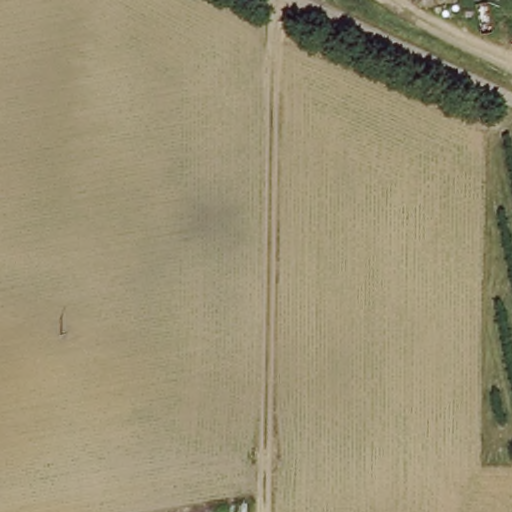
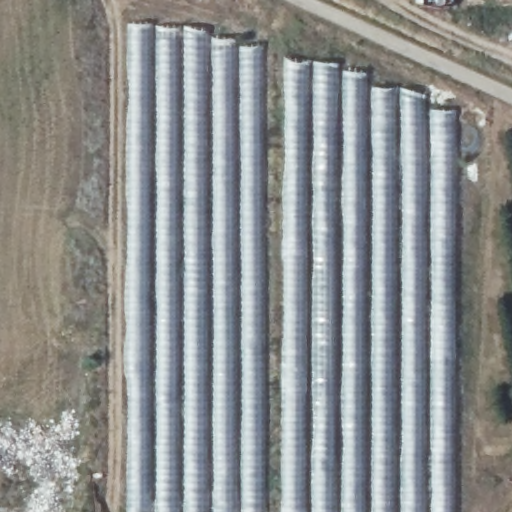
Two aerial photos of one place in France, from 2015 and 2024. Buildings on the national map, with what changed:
new [(306,59),(457,112),(446,512),(120,512),(128,27),(306,59)]

